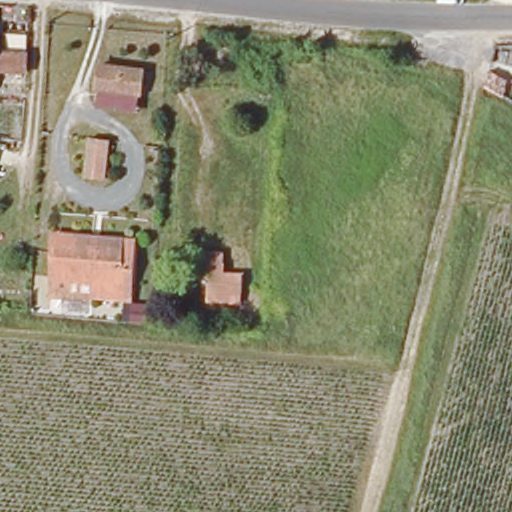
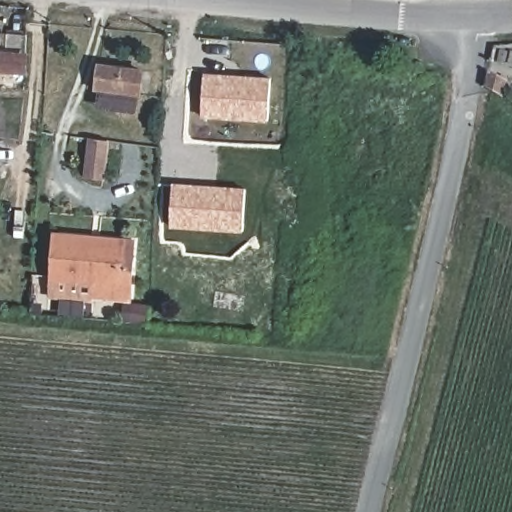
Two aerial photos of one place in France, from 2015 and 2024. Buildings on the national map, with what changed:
unchanged [(24,71),(0,70),(0,64),(2,33),(26,34),(24,71)]
unchanged [(135,95),(91,91),(94,66),(137,70),(135,95)]
new [(270,77),(267,121),(201,117),(204,74),(270,77)]
unchanged [(87,177),(91,142),(91,138),(108,140),(105,179),(92,177),(87,177)]
demolished [(362,183),(368,168),(385,174),(392,157),(437,174),(428,208),(362,183)]
new [(246,190),(243,233),(170,229),(172,185),(246,190)]
unchanged [(130,305),(90,303),(90,286),(50,285),(51,240),(87,241),(120,244),(132,244),(130,305)]
unchanged [(211,271),(239,274),(237,302),(203,300),(205,278),(195,277),(198,250),(213,252),(211,271)]

